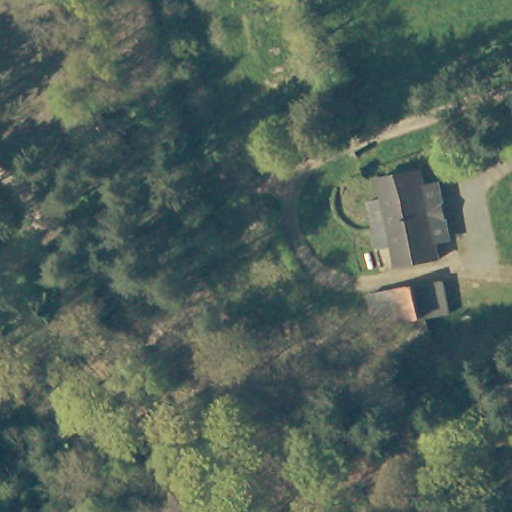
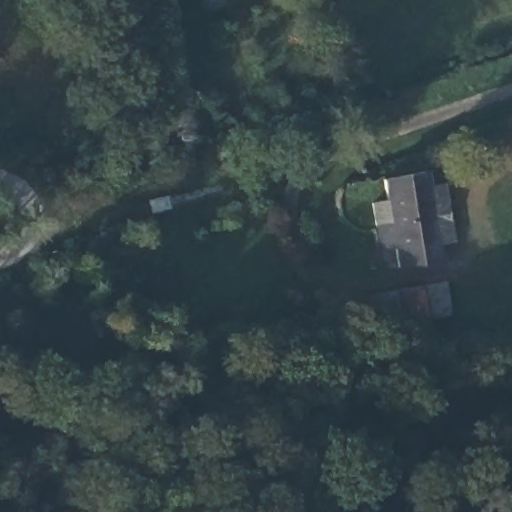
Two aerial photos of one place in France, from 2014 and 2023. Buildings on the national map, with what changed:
unchanged [(400,264),(397,245),(380,246),(372,199),(388,197),(384,175),(424,170),(426,184),(442,182),(452,238),(435,241),(438,257),(400,264)]
unchanged [(405,342),(401,320),(392,321),(387,322),(374,324),(370,299),(381,297),(394,293),(394,292),(410,287),(411,291),(434,286),(439,312),(426,315),(429,340),(405,342)]

